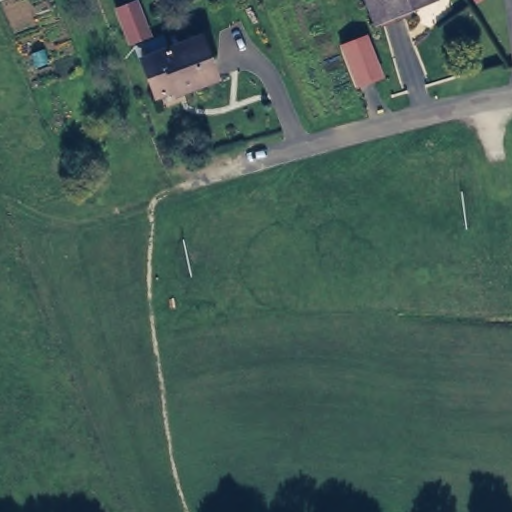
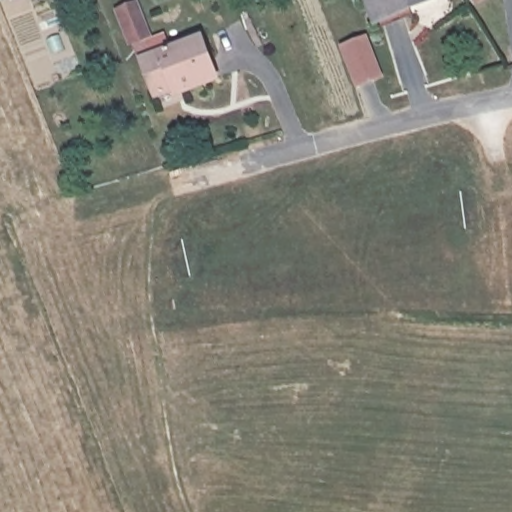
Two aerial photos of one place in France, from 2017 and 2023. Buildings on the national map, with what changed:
unchanged [(375,19),(367,0),(424,0),(411,5),(375,19)]
unchanged [(148,53),(163,46),(197,36),(206,32),(220,71),(212,75),(188,83),(186,78),(177,80),(161,86),(148,53)]
unchanged [(343,43),(366,34),(379,72),(357,79),(343,43)]

